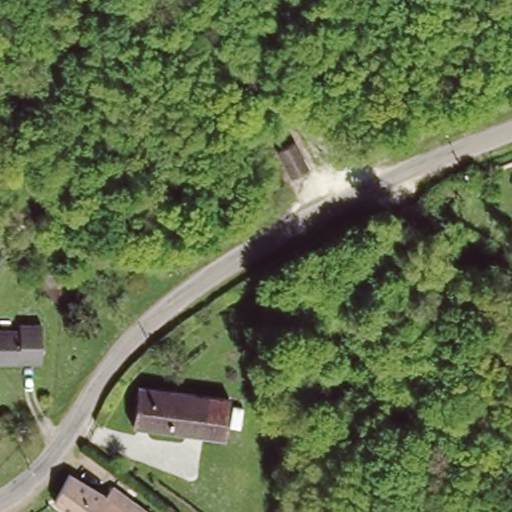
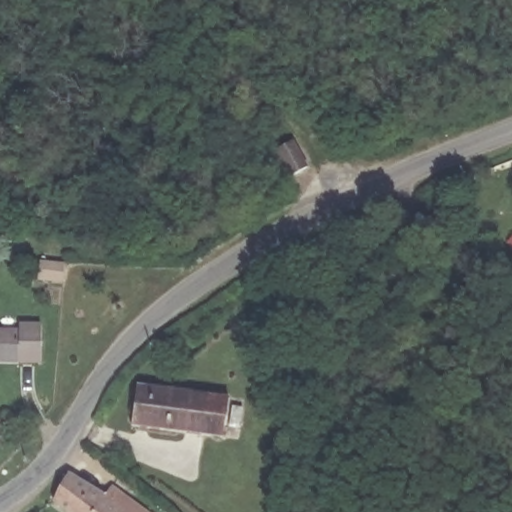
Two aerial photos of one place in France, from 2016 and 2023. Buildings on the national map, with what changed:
unchanged [(312,164),(298,174),(282,152),(296,141),(312,164)]
unchanged [(65,287),(38,284),(41,263),(67,266),(65,287)]
unchanged [(0,364),(0,329),(26,330),(25,355),(24,364),(0,364)]
unchanged [(232,399),(227,439),(135,428),(140,388),(232,399)]
unchanged [(72,475),(112,496),(120,486),(157,512),(68,512),(57,504),(72,475)]

